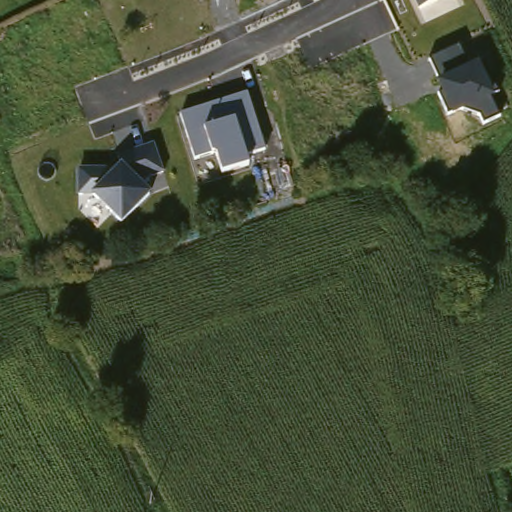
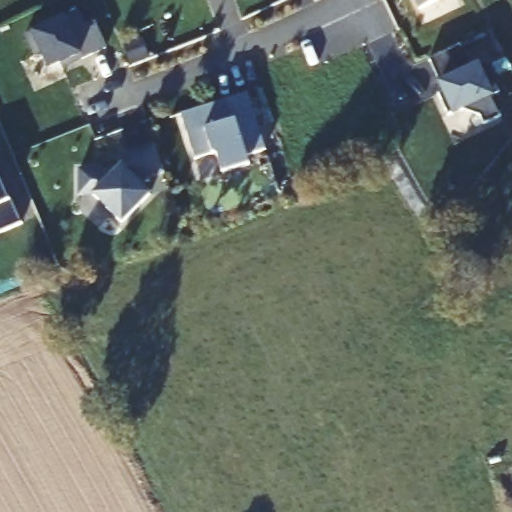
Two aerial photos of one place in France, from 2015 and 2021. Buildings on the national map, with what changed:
demolished [(145,9),(108,25),(101,13),(78,24),(69,4),(77,0),(141,0),(145,9)]
unchanged [(418,10),(414,0),(440,0),(418,10)]
new [(107,49),(61,70),(60,67),(48,72),(40,54),(33,58),(23,36),(31,32),(64,17),(78,10),(85,26),(95,22),(107,49)]
unchanged [(485,125),(480,117),(463,113),(447,119),(437,97),(442,94),(428,63),(461,49),(470,67),(481,63),(495,94),(490,96),(500,117),(485,125)]
unchanged [(246,154),(251,164),(221,173),(214,153),(195,161),(180,118),(247,95),(266,150),(246,154)]
unchanged [(144,186),(152,194),(120,224),(91,198),(80,197),(80,170),(115,169),(122,161),(130,154),(152,147),(162,174),(144,186)]
new [(13,202),(15,201),(25,224),(0,235),(0,172),(13,202)]

